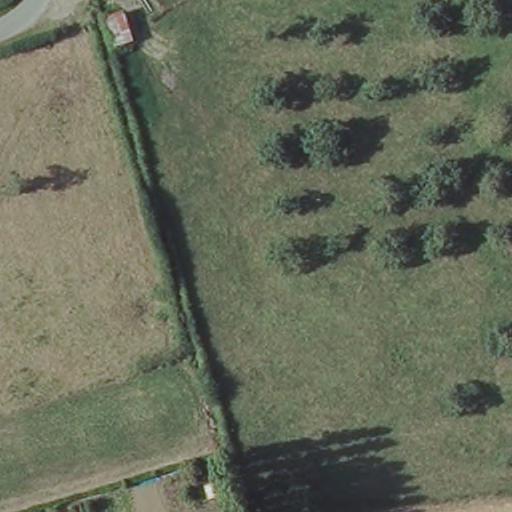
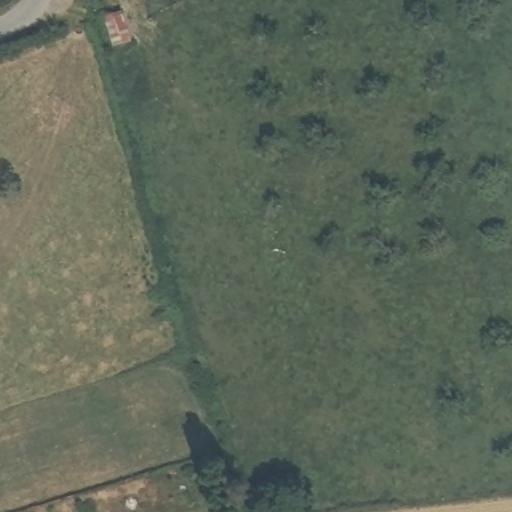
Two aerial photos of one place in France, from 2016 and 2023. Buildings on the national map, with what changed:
unchanged [(102,12),(121,6),(131,41),(111,45),(102,12)]

